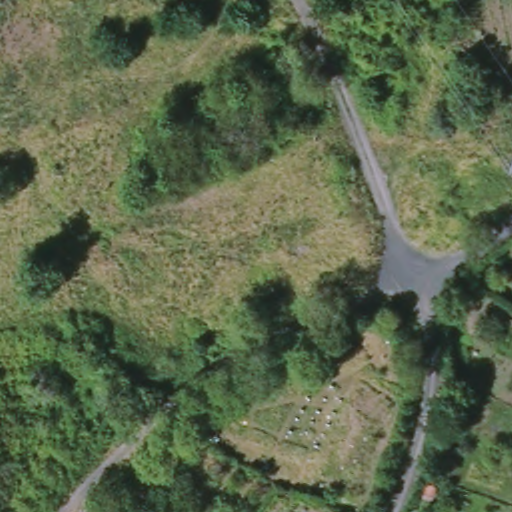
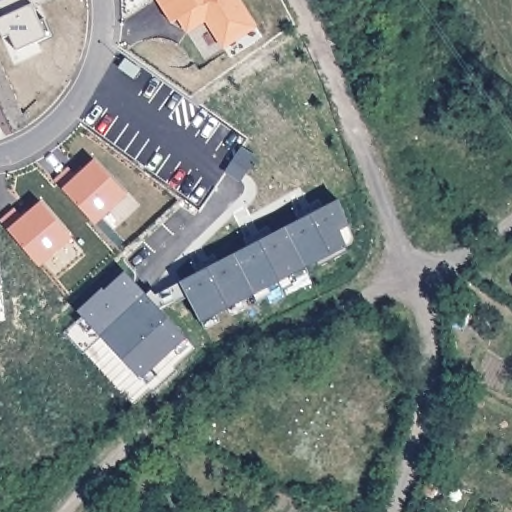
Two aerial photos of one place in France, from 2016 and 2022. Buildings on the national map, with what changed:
new [(41,19),(46,17),(53,34),(18,50),(11,35),(5,37),(0,27),(0,18),(3,17),(0,9),(0,0),(33,0),(41,19)]
new [(180,19),(172,24),(158,0),(239,0),(256,27),(225,47),(206,21),(188,32),(180,19)]
new [(127,56),(143,67),(136,76),(121,65),(127,56)]
new [(243,145),(260,155),(245,179),(228,168),(243,145)]
new [(71,166),(81,175),(99,157),(130,191),(98,221),(58,179),(71,166)]
new [(342,194),(363,234),(207,317),(186,278),(342,194)]
new [(19,208),(28,217),(45,201),(75,235),(43,263),(6,220),(19,208)]
new [(0,240),(2,242),(5,278),(6,285),(0,285),(0,240)]
new [(107,286),(110,288),(130,270),(192,334),(171,353),(148,376),(88,313),(85,308),(107,286)]
new [(88,313),(148,376),(171,353),(183,366),(160,388),(156,383),(137,401),(70,331),(88,313)]

